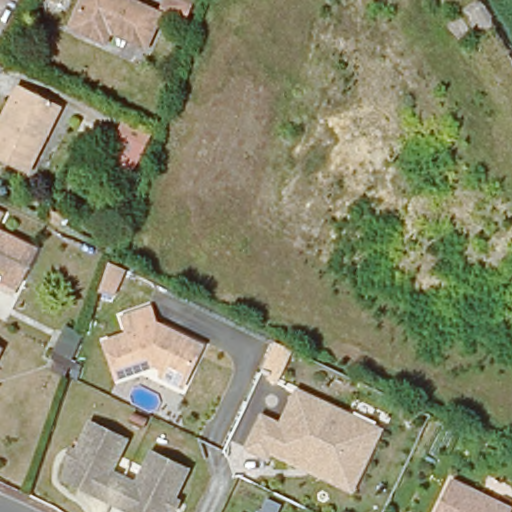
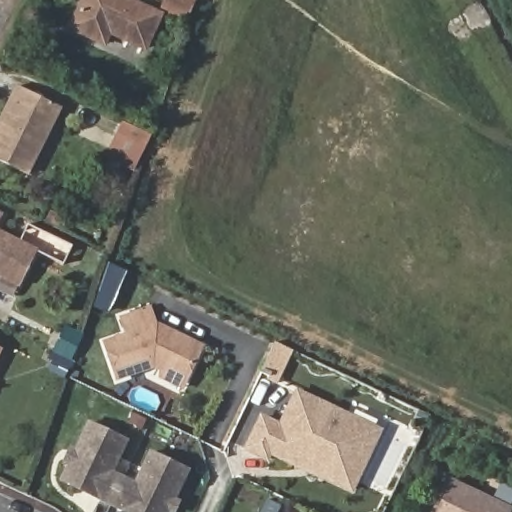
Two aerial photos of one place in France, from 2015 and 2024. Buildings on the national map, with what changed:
unchanged [(144,51),(110,34),(103,45),(69,28),(82,0),(130,0),(161,16),(144,51)]
unchanged [(170,4),(171,0),(207,0),(205,6),(201,16),(199,23),(168,11),(170,4)]
unchanged [(24,100),(21,98),(28,84),(68,102),(35,171),(0,154),(0,152),(24,100)]
unchanged [(149,131),(144,146),(117,133),(121,118),(149,131)]
unchanged [(6,218),(0,230),(42,249),(25,282),(0,270),(0,215),(6,218)]
unchanged [(128,276),(115,301),(99,293),(108,266),(128,276)]
unchanged [(162,377),(165,370),(152,364),(115,379),(102,343),(124,335),(118,318),(149,306),(155,323),(201,344),(185,378),(182,385),(162,377)]
unchanged [(70,358),(75,362),(65,379),(44,368),(64,325),(80,336),(70,358)]
unchanged [(7,342),(0,356),(0,339),(7,342)]
unchanged [(273,382),(267,379),(268,376),(259,372),(273,342),(288,349),(273,382)]
unchanged [(257,420),(277,429),(292,394),(375,432),(354,478),(314,460),(318,452),(308,447),(298,469),(266,454),(263,461),(243,451),(257,420)]
unchanged [(171,512),(170,512),(166,510),(165,512),(123,512),(59,484),(66,467),(61,464),(66,454),(71,456),(85,425),(122,442),(107,474),(133,485),(147,453),(184,469),(171,499),(176,502),(171,512)]
unchanged [(449,480),(511,510),(509,512),(434,512),(449,480)]

